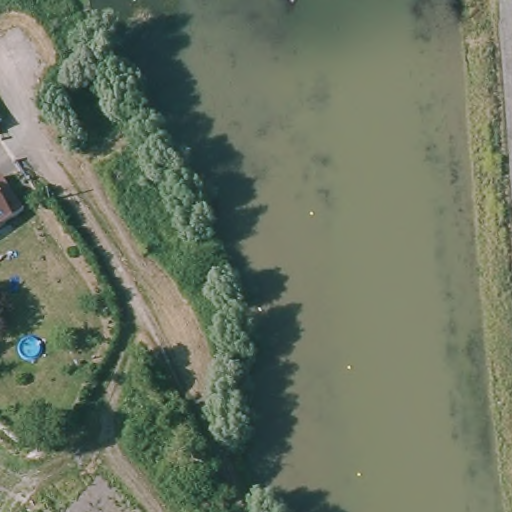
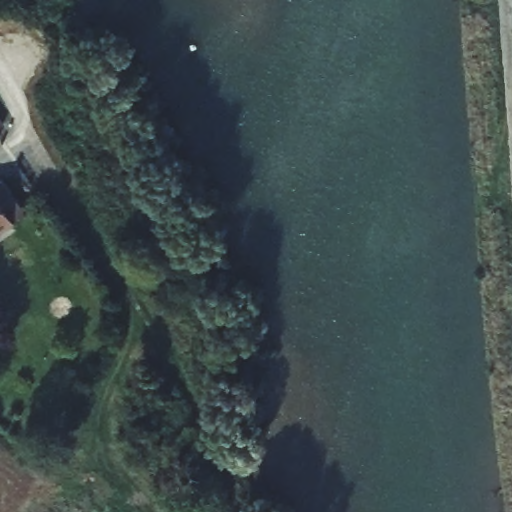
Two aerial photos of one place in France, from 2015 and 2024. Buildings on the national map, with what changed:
unchanged [(0,134),(0,122),(5,129),(0,134)]
unchanged [(0,193),(7,188),(26,217),(0,236),(0,193)]

